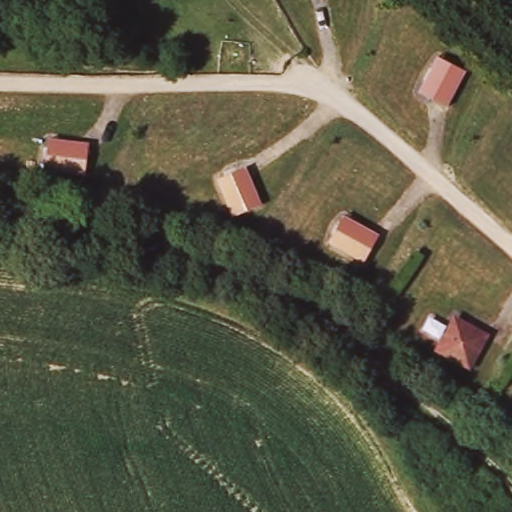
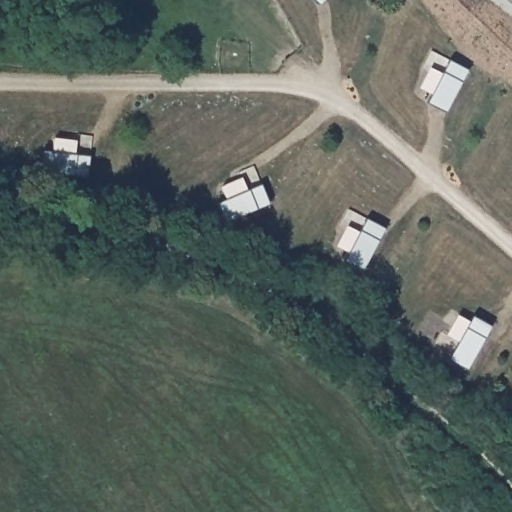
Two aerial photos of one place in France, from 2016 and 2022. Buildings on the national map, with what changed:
unchanged [(442,54),(469,70),(452,102),(424,87),(442,54)]
unchanged [(91,141),(91,172),(51,171),(52,137),(91,141)]
unchanged [(251,165),(265,200),(237,211),(223,179),(251,165)]
unchanged [(383,229),(369,256),(333,240),(346,211),(383,229)]
unchanged [(469,372),(433,352),(454,317),(488,337),(469,372)]

